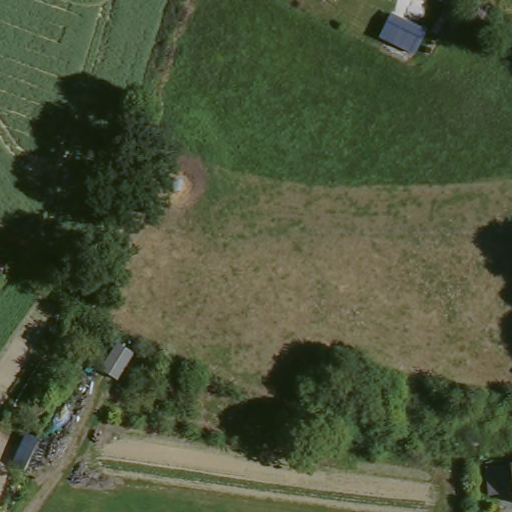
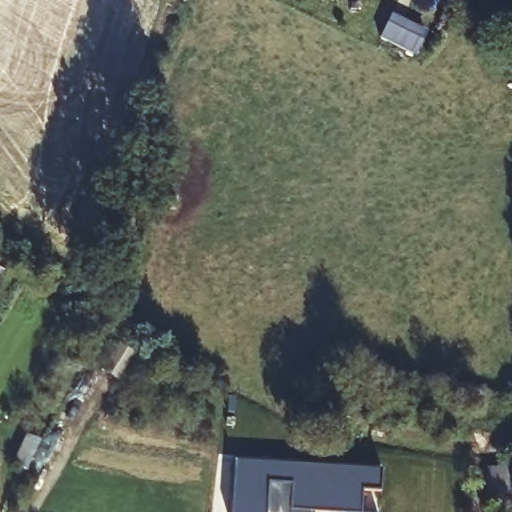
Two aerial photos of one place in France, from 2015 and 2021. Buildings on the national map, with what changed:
unchanged [(391,19),(422,36),(412,58),(379,40),(391,19)]
unchanged [(111,351),(127,360),(114,385),(98,376),(111,351)]
unchanged [(18,455),(30,436),(45,444),(34,464),(29,474),(12,465),(18,455)]
new [(234,460),(379,472),(378,492),(360,490),(360,512),(321,512),(311,511),(311,512),(290,512),(290,508),(291,484),(266,482),(265,512),(231,512),(234,460)]
unchanged [(512,477),(512,500),(497,502),(494,478),(512,477)]

